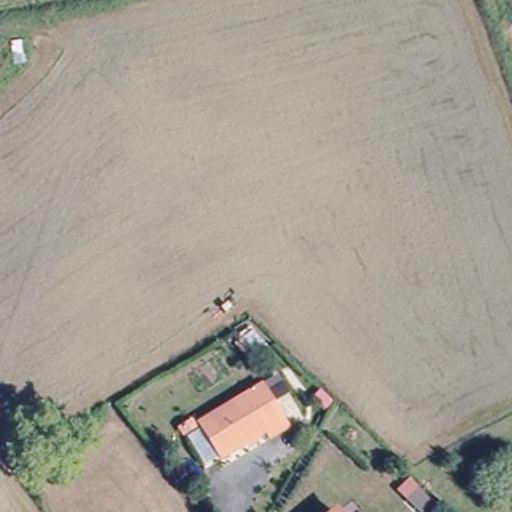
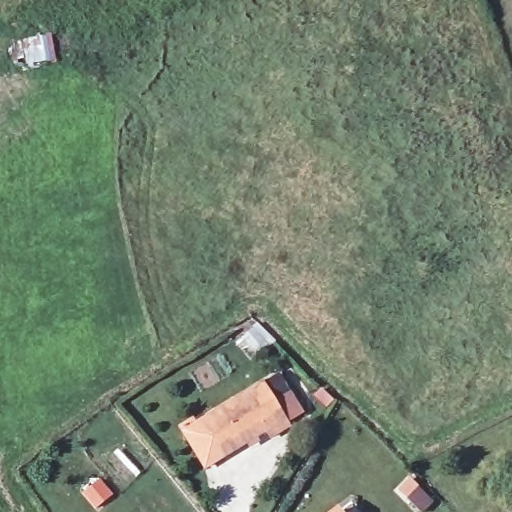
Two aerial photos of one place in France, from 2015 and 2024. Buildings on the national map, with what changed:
unchanged [(262,440),(256,429),(220,452),(201,422),(257,390),(280,428),(262,440)]

